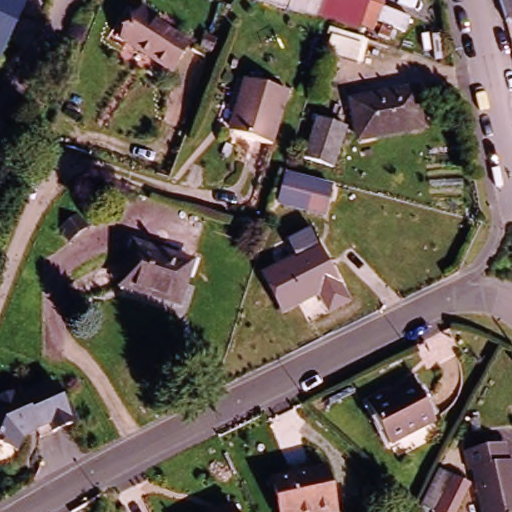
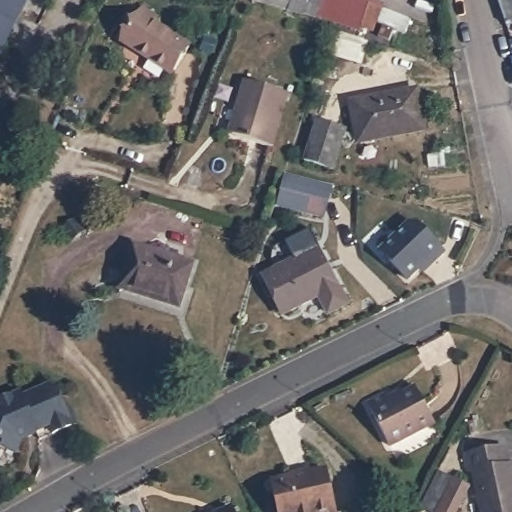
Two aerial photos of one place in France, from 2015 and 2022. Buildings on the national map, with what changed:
unchanged [(28,0),(0,60),(0,0),(28,0)]
unchanged [(361,30),(315,14),(315,17),(302,12),(302,14),(277,8),(251,0),(363,0),(370,3),(361,30)]
unchanged [(497,0),(512,0),(512,25),(507,29),(497,0)]
unchanged [(165,76),(115,44),(135,15),(139,8),(154,18),(150,24),(186,47),(165,76)]
unchanged [(351,62),(322,53),(328,35),(330,29),(359,38),(357,44),(351,62)]
unchanged [(272,146),(229,135),(243,81),(288,95),(272,146)]
unchanged [(427,129),(360,142),(352,103),(420,91),(427,129)]
unchanged [(335,171),(303,160),(317,120),(348,131),(335,171)]
unchanged [(322,205),(281,195),(286,176),(327,186),(322,205)]
new [(419,269),(406,281),(379,252),(407,225),(416,225),(443,254),(431,265),(422,273),(419,269)]
unchanged [(339,287),(287,314),(267,274),(285,265),(278,253),(312,235),(339,287)]
unchanged [(171,310),(120,294),(133,251),(193,269),(187,290),(180,313),(171,310)]
unchanged [(68,426),(35,440),(31,429),(22,433),(24,437),(18,440),(13,453),(0,448),(0,398),(16,392),(18,396),(43,386),(52,390),(68,426)]
unchanged [(436,428),(392,450),(370,408),(389,400),(392,407),(419,393),(436,428)]
unchanged [(481,478),(475,480),(473,461),(512,454),(512,512),(488,512),(481,478)]
unchanged [(276,491),(330,480),(337,512),(281,512),(276,491)]
unchanged [(472,512),(455,512),(464,493),(478,500),(472,512)]
unchanged [(231,512),(228,512),(230,511),(231,512)]

